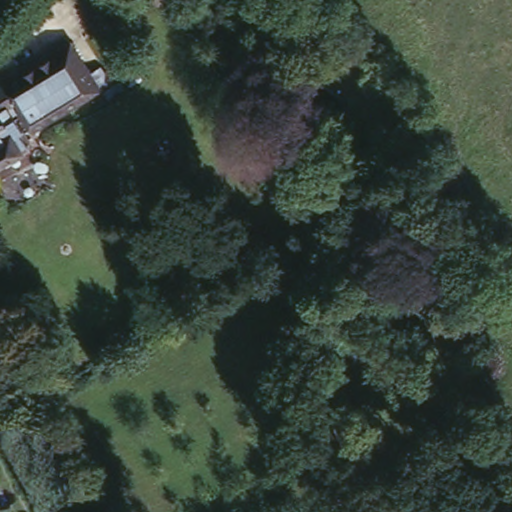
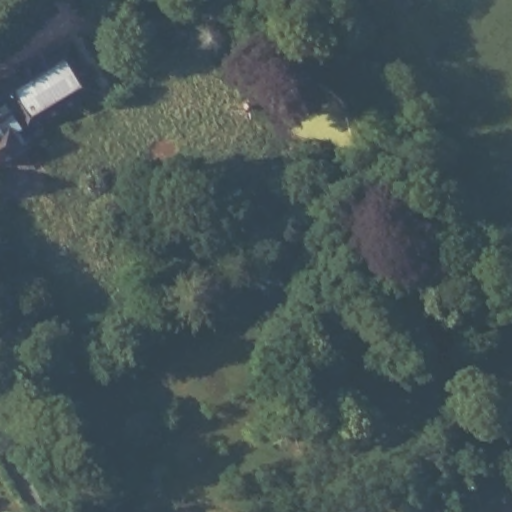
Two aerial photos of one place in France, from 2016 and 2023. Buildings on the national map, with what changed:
unchanged [(21,133),(10,116),(4,119),(19,145),(0,155),(0,81),(60,46),(89,93),(21,133)]

